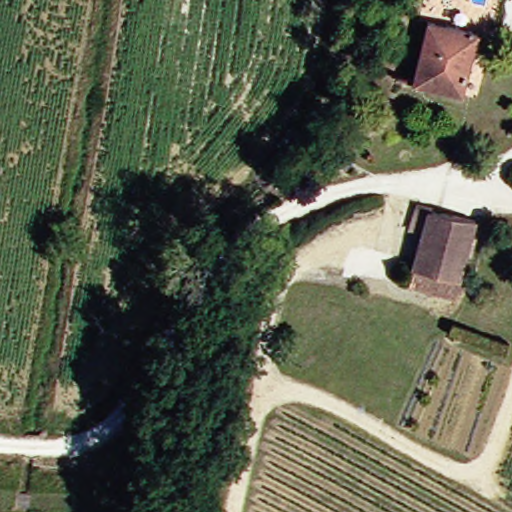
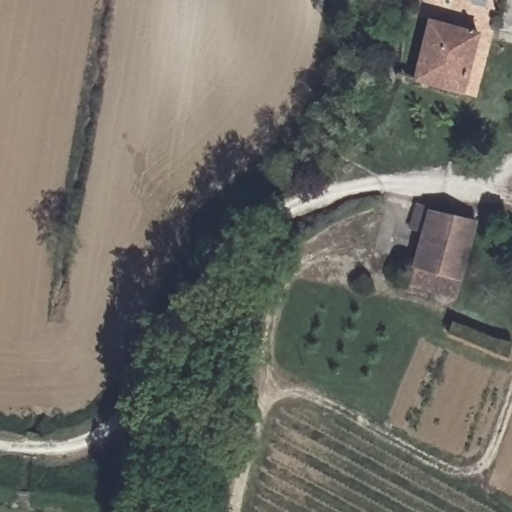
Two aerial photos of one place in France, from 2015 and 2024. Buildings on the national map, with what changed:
unchanged [(481,36),(466,91),(419,80),(433,25),(481,36)]
unchanged [(409,266),(418,232),(409,231),(416,203),(473,223),(457,284),(409,266)]

